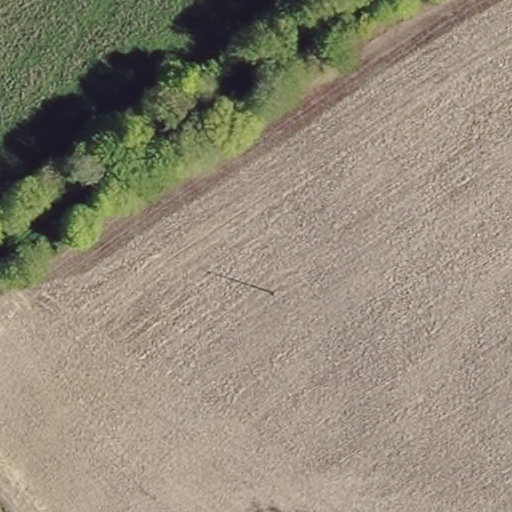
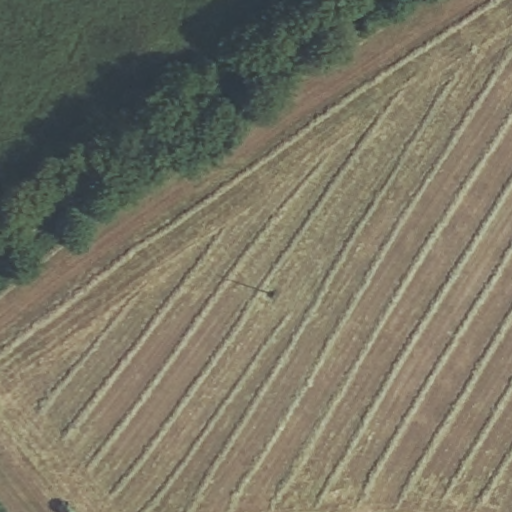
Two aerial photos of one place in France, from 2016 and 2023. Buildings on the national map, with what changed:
[]

